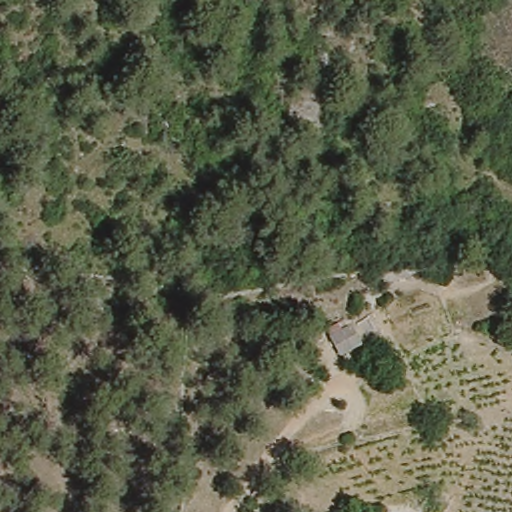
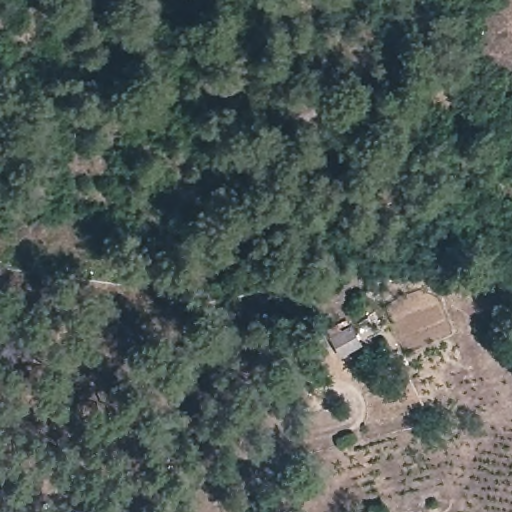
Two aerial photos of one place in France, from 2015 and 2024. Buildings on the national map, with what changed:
unchanged [(345,319),(360,346),(338,358),(323,330),(345,319)]

